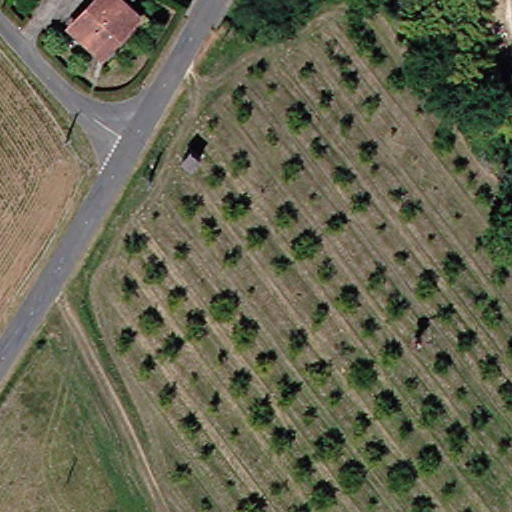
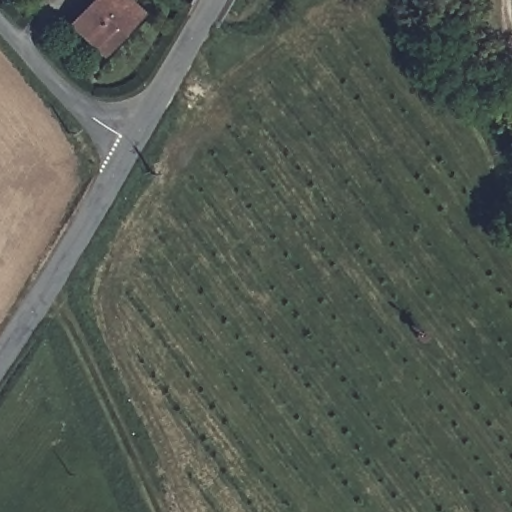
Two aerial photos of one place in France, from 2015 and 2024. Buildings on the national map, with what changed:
unchanged [(134,19),(97,59),(65,30),(93,0),(128,0),(122,8),(134,19)]

